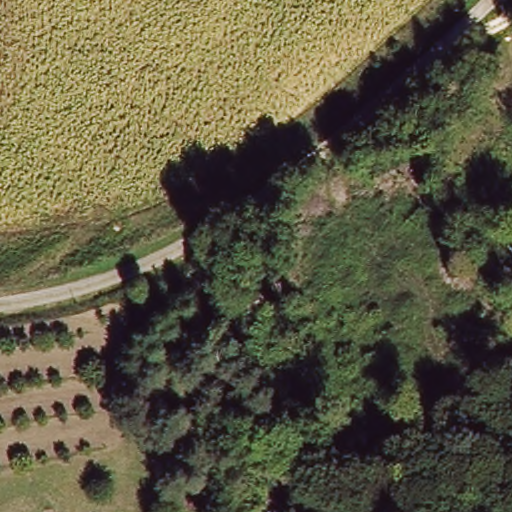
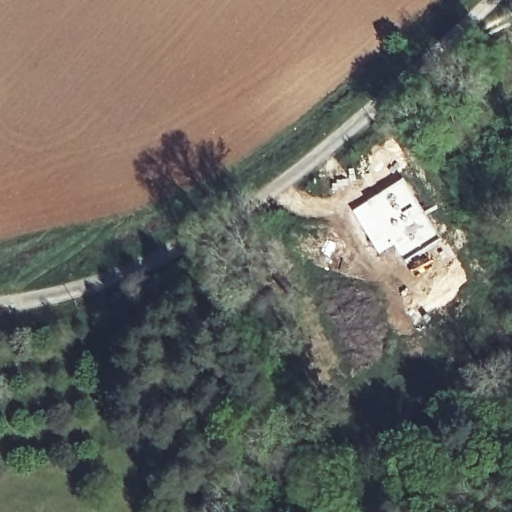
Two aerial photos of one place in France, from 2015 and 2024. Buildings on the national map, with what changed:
new [(403,178),(438,235),(401,258),(392,246),(378,255),(351,211),(403,178)]

